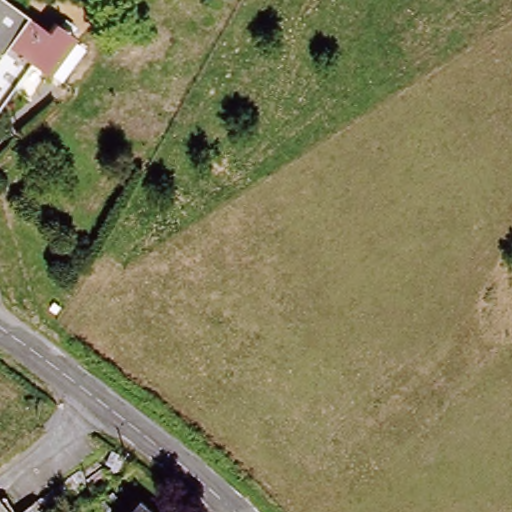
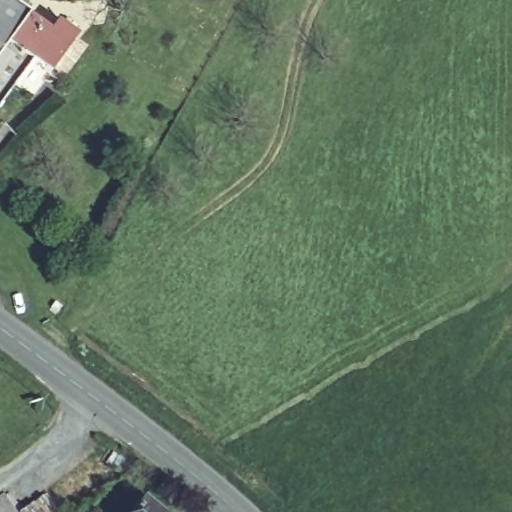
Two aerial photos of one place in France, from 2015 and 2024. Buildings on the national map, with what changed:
unchanged [(0,107),(0,1),(47,34),(55,24),(75,37),(49,75),(30,62),(0,107)]
unchanged [(13,512),(0,512),(0,498),(1,497),(13,512)]
unchanged [(156,512),(133,512),(143,501),(156,512)]

